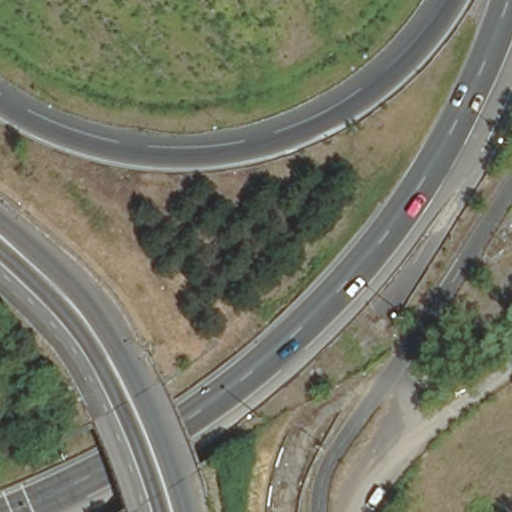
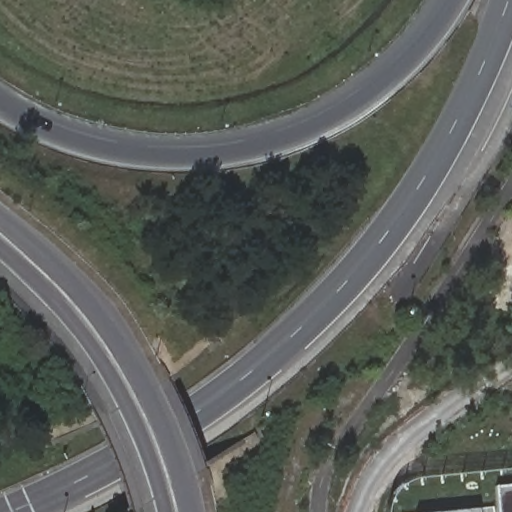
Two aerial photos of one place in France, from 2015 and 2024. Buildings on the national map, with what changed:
new [(498,512),(496,485),(512,484),(512,512),(498,512)]
new [(492,506),(492,512),(435,512),(478,508),(492,506)]

